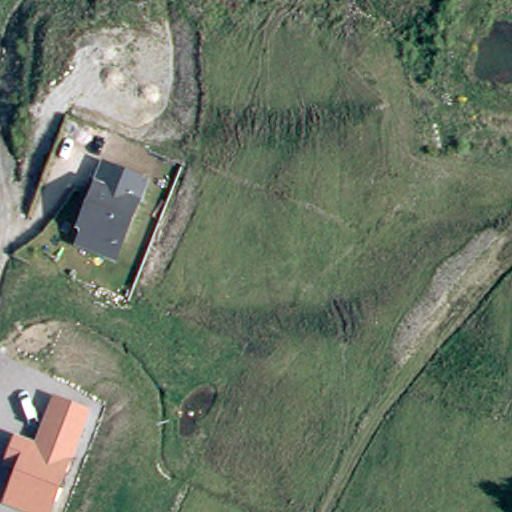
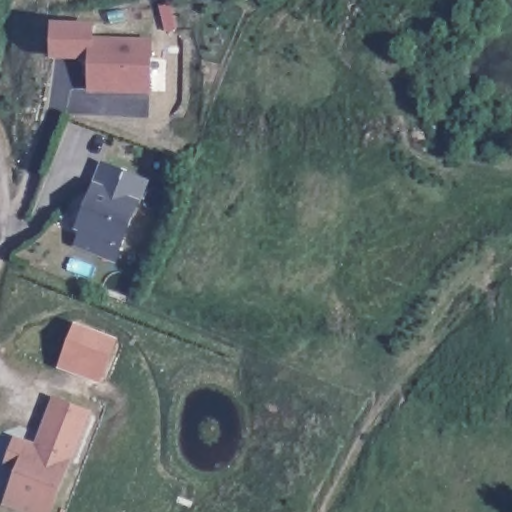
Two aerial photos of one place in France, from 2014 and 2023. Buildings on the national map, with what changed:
new [(96,36),(153,38),(152,93),(88,91),(88,60),(51,59),(52,21),(95,21),(96,36)]
unchanged [(151,176),(118,261),(73,244),(103,158),(151,176)]
new [(101,385),(58,367),(78,319),(120,336),(101,385)]
unchanged [(53,512),(24,512),(1,503),(12,473),(1,470),(14,436),(34,443),(50,396),(93,410),(53,512)]

